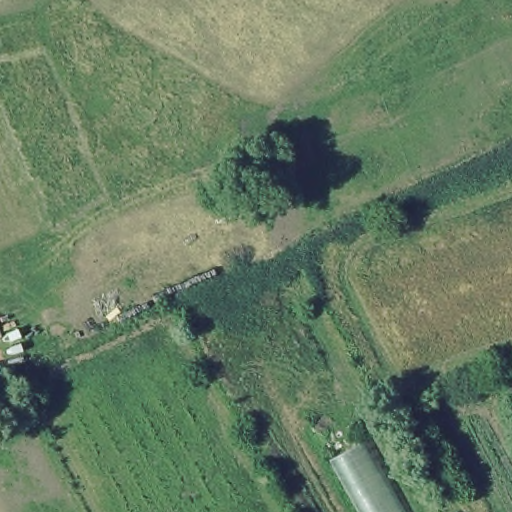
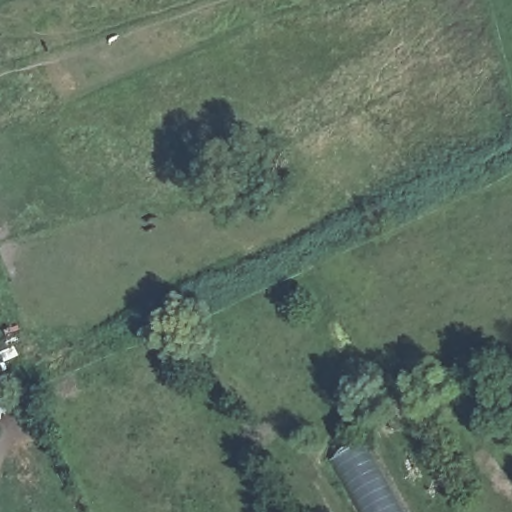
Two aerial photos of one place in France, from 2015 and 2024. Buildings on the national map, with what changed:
unchanged [(333,457),(368,436),(410,512),(363,512),(333,457)]

